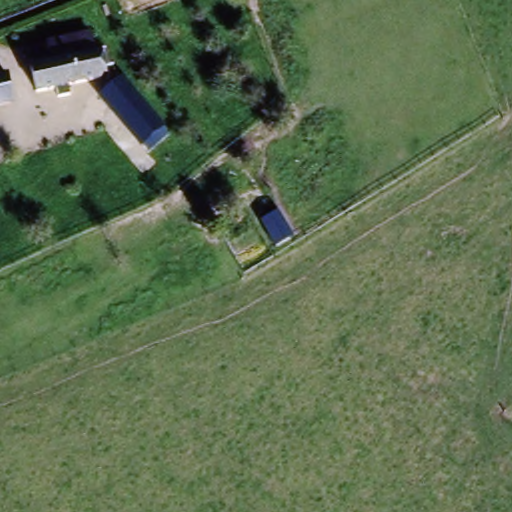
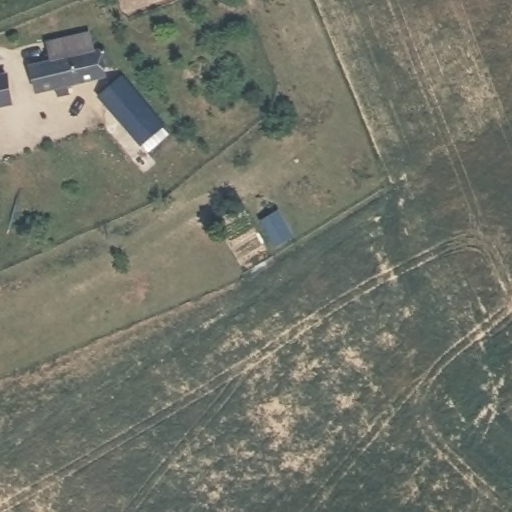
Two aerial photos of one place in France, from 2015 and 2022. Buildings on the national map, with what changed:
unchanged [(66,94),(53,96),(51,88),(32,92),(27,66),(47,62),(42,43),(85,33),(90,52),(101,49),(106,62),(94,66),(96,78),(64,84),(66,94)]
unchanged [(5,71),(10,99),(0,101),(0,72),(5,71)]
unchanged [(98,102),(117,84),(176,145),(158,163),(98,102)]

